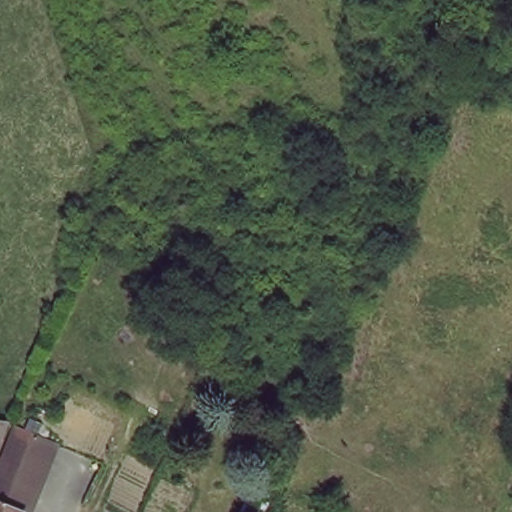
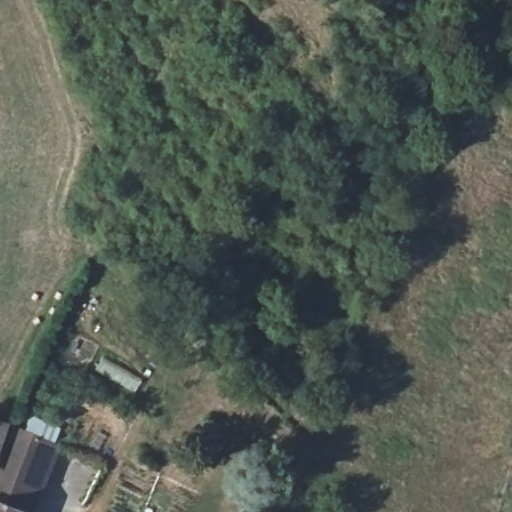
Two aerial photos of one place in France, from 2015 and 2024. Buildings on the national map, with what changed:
unchanged [(0,430),(15,432),(0,466),(0,430)]
unchanged [(36,480),(29,510),(29,512),(0,512),(0,473),(24,477),(36,480)]

